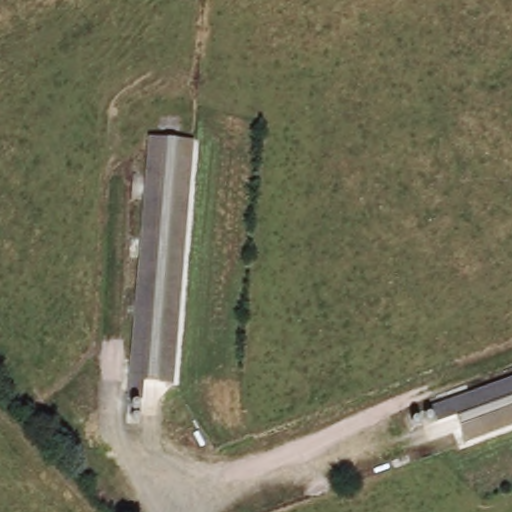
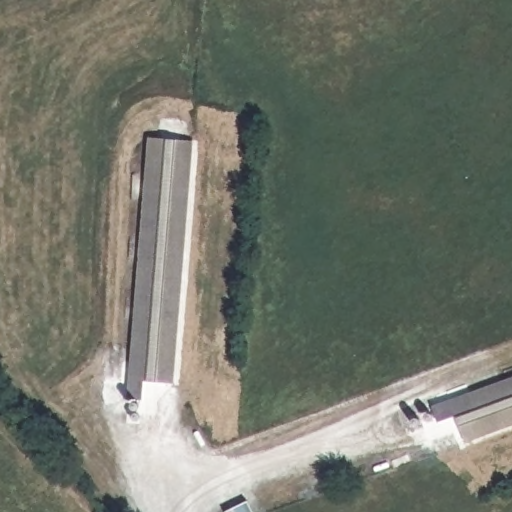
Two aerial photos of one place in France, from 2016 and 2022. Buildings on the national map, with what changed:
unchanged [(175,386),(148,384),(147,401),(132,401),(145,139),(186,141),(175,386)]
unchanged [(455,417),(437,424),(432,408),(512,376),(512,425),(464,444),(455,417)]

